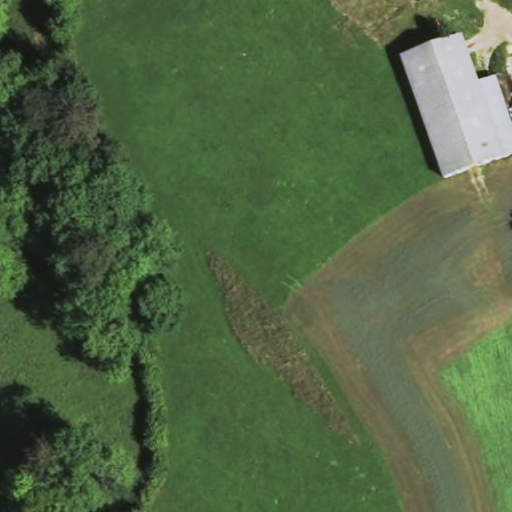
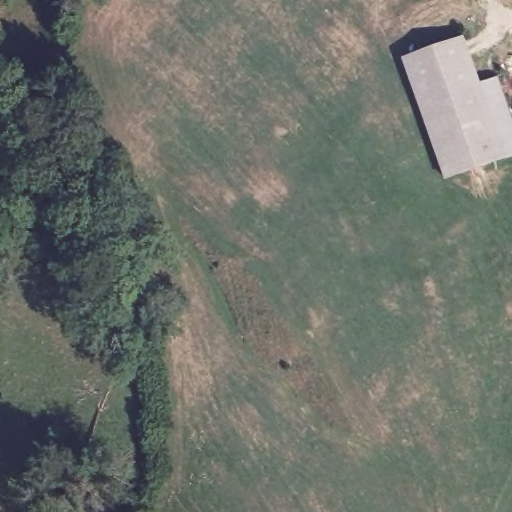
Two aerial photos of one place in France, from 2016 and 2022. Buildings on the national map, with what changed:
unchanged [(483,86),(503,79),(512,106),(512,158),(449,178),(422,106),(406,62),(467,39),(483,86)]

